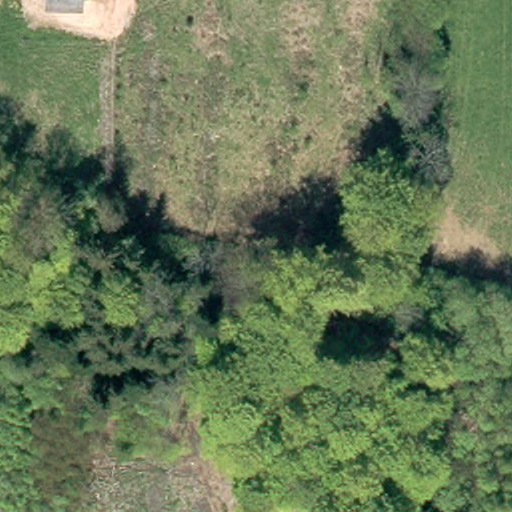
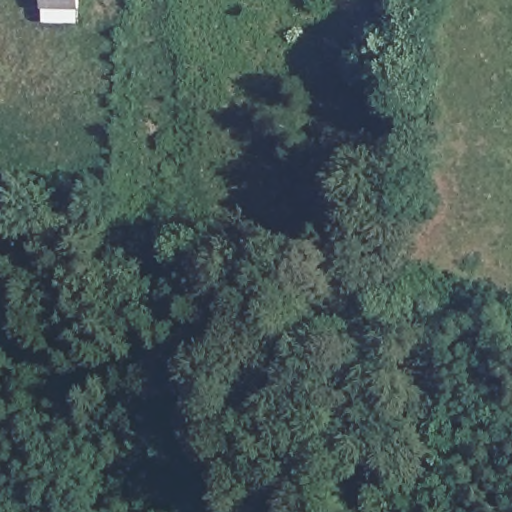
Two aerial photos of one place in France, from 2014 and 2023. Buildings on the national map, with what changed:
unchanged [(45,6),(45,0),(79,0),(79,7),(45,6)]

